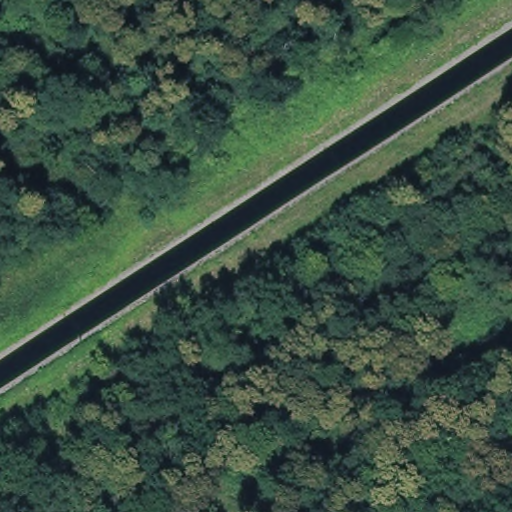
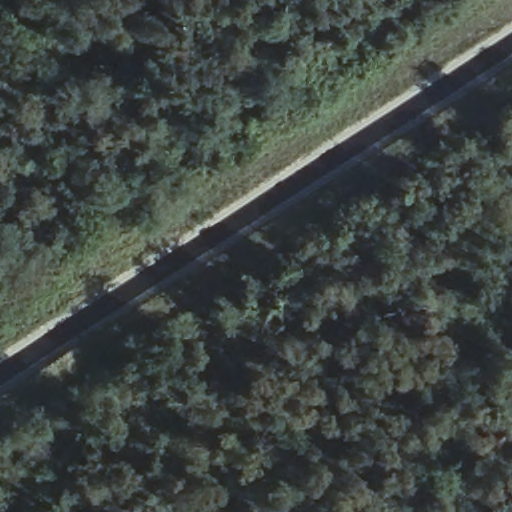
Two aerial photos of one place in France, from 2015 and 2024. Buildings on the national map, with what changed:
[]

